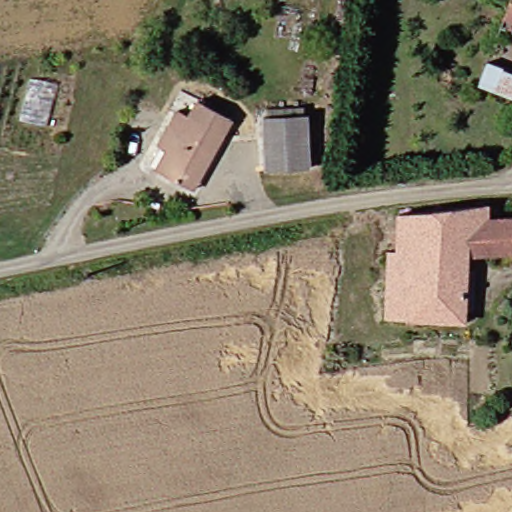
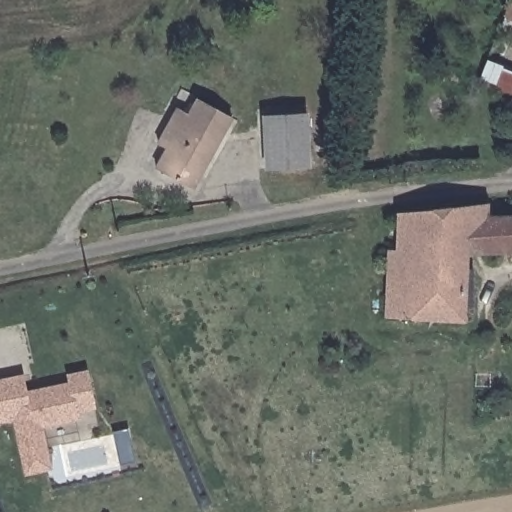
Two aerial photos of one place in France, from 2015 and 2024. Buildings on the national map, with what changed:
unchanged [(512,10),(512,29),(506,27),(512,10)]
unchanged [(512,95),(489,87),(485,85),(492,63),(512,70),(512,95)]
demolished [(37,75),(65,83),(51,126),(26,120),(37,75)]
unchanged [(236,116),(196,189),(161,168),(170,149),(162,143),(183,106),(194,114),(202,98),(236,116)]
unchanged [(313,169),(270,169),(269,117),(313,117),(313,169)]
unchanged [(495,219),(512,219),(512,255),(472,254),(469,322),(390,322),(390,249),(402,249),(402,215),(496,207),(495,219)]
new [(24,374),(27,391),(71,382),(70,374),(87,371),(95,406),(77,409),(79,417),(42,424),(50,467),(27,472),(15,416),(0,419),(0,379),(24,374)]

